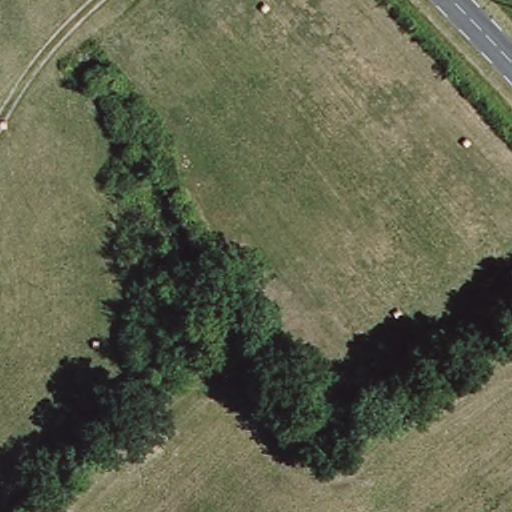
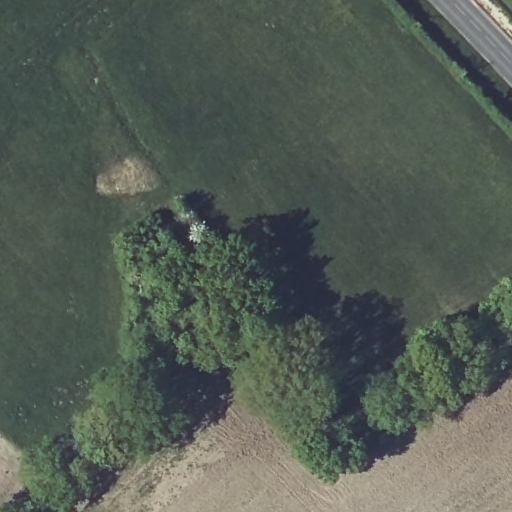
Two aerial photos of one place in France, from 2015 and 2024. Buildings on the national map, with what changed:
[]

